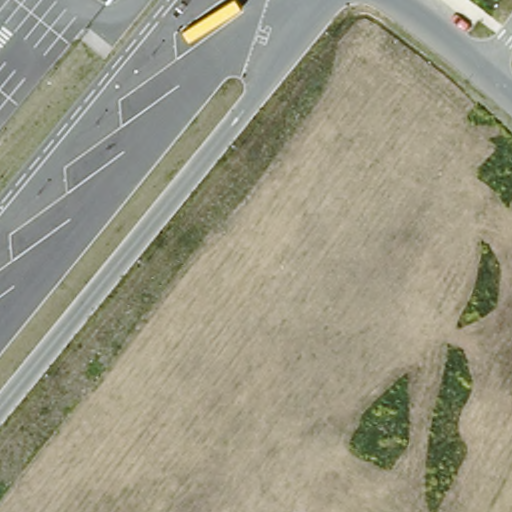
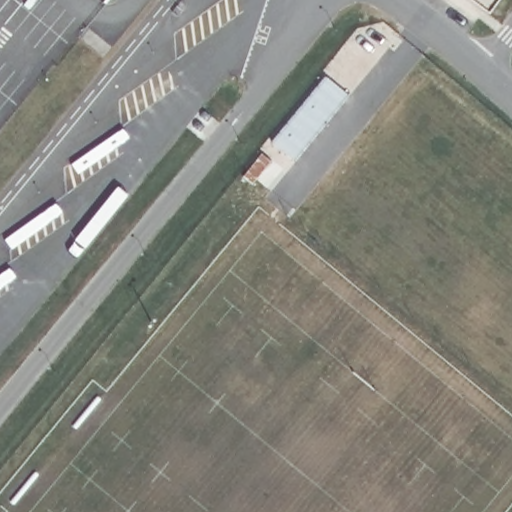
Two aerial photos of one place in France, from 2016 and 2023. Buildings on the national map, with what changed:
new [(325,75),(350,96),(296,161),(272,142),(325,75)]

